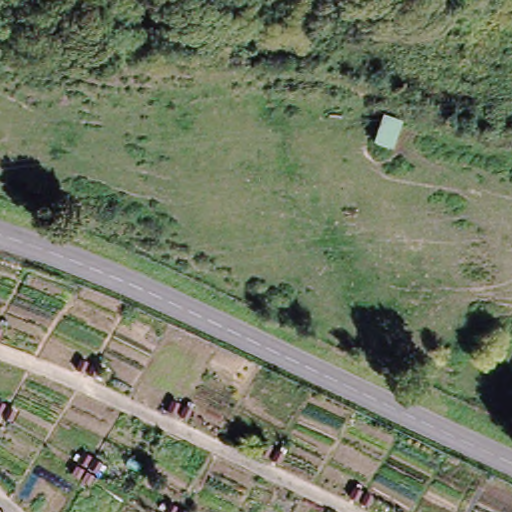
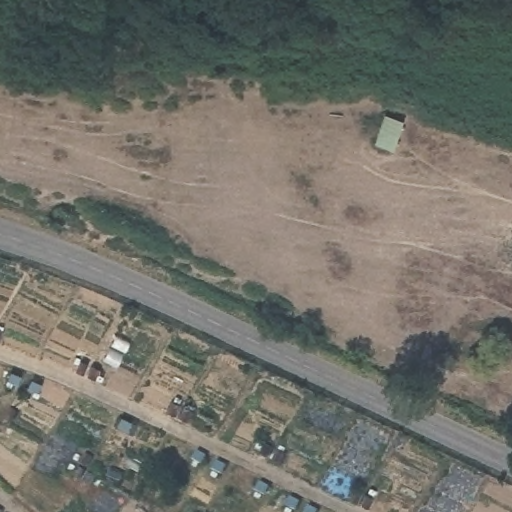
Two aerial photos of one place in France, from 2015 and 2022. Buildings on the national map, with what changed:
unchanged [(400,121),(390,149),(376,144),(387,116),(400,121)]

